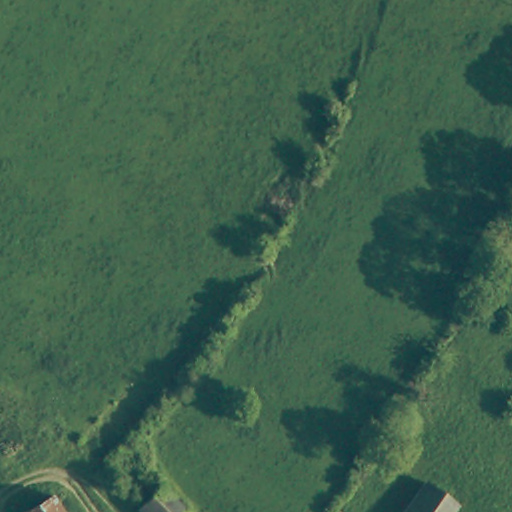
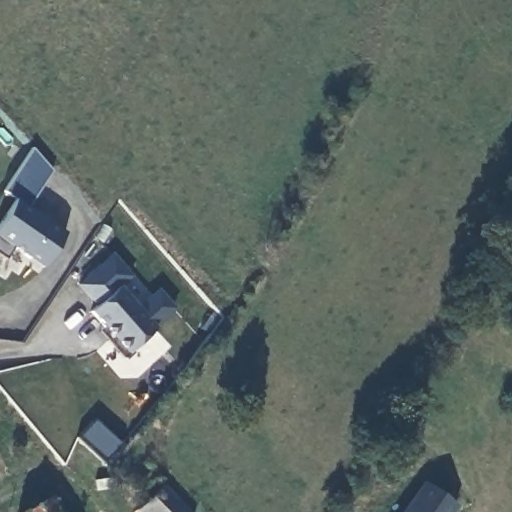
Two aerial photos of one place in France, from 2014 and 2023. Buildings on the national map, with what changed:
new [(5,190),(34,147),(54,169),(30,206),(69,231),(50,260),(36,251),(32,257),(16,246),(7,259),(0,254),(0,224),(17,199),(5,190)]
new [(127,353),(90,311),(96,305),(76,284),(111,252),(132,276),(120,287),(139,307),(160,289),(177,308),(156,327),(127,353)]
unchanged [(422,476),(453,499),(445,512),(398,512),(422,476)]
unchanged [(138,510),(148,499),(164,483),(189,512),(140,512),(138,510)]
unchanged [(17,510),(51,490),(66,512),(18,512),(17,510)]

